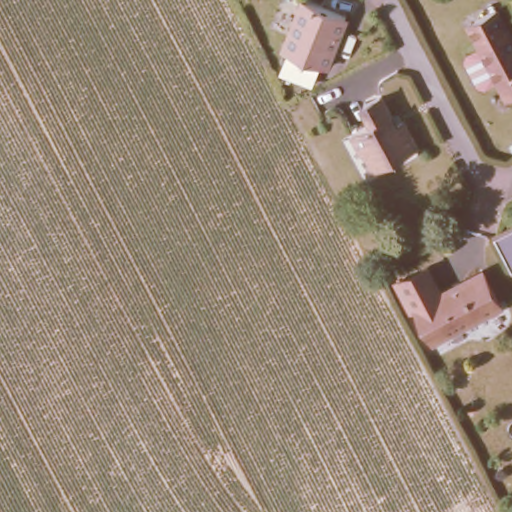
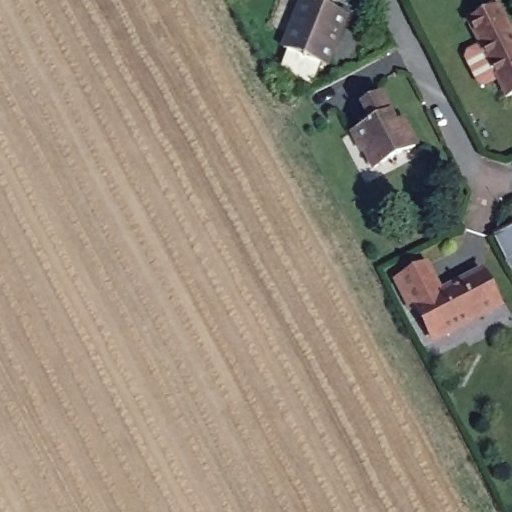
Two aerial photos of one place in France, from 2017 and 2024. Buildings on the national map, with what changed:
unchanged [(302,0),(322,0),(347,11),(324,60),(283,42),(302,0)]
unchanged [(512,35),(512,90),(508,92),(469,17),(496,3),(512,35)]
unchanged [(368,147),(366,148),(356,128),(376,117),(366,100),(383,91),(393,111),(397,121),(404,117),(417,142),(376,163),(368,147)]
unchanged [(512,269),(509,270),(491,232),(512,222),(512,269)]
unchanged [(417,300),(413,302),(399,275),(429,260),(443,286),(485,266),(503,300),(434,334),(417,300)]

